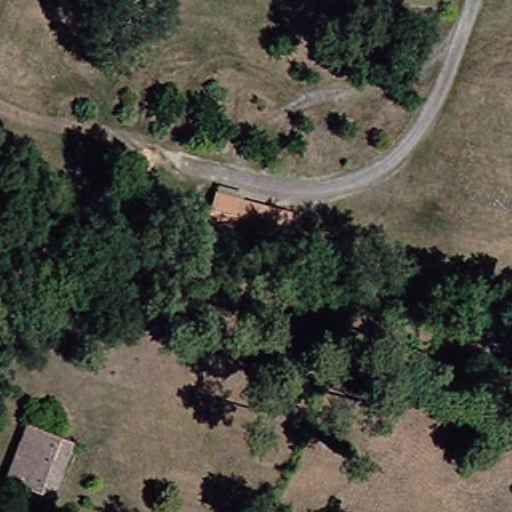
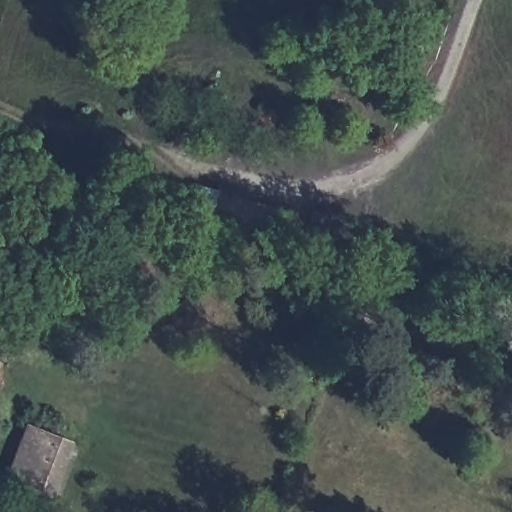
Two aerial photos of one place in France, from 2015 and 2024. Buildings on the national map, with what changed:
unchanged [(290,220),(255,210),(253,222),(232,214),(242,185),(294,199),(290,220)]
unchanged [(55,494),(45,488),(13,474),(32,423),(65,436),(75,441),(55,494)]

